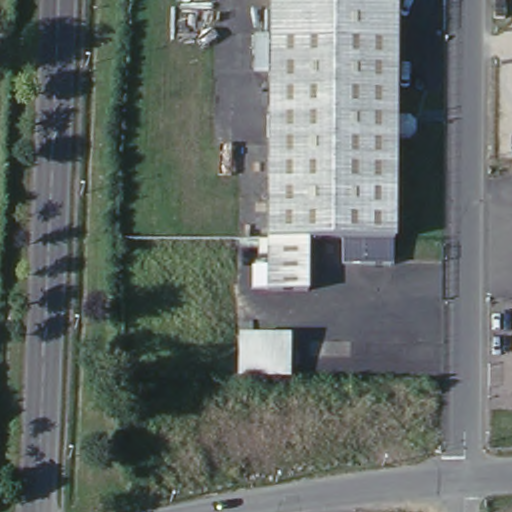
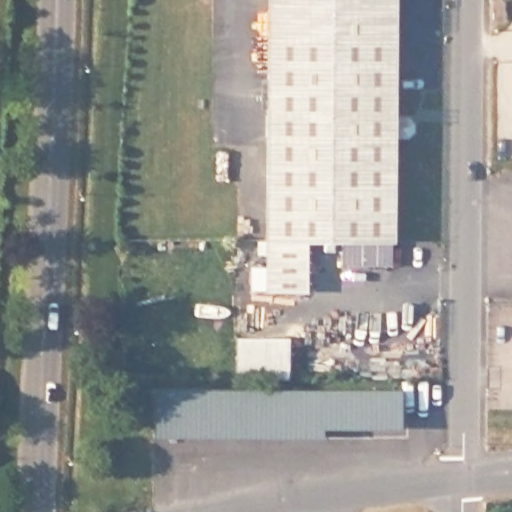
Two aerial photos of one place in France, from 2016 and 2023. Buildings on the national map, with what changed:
unchanged [(265,0),(395,0),(393,260),(337,260),(337,237),(302,237),(303,287),(262,286),(262,250),(253,250),(253,235),(264,235),(265,142),(265,0)]
unchanged [(493,12),(493,25),(483,25),(483,12),(493,12)]
unchanged [(289,375),(237,375),(237,342),(237,335),(290,336),(290,341),(289,375)]
new [(156,382),(405,383),(404,427),(326,427),(326,437),(157,435),(156,382)]

